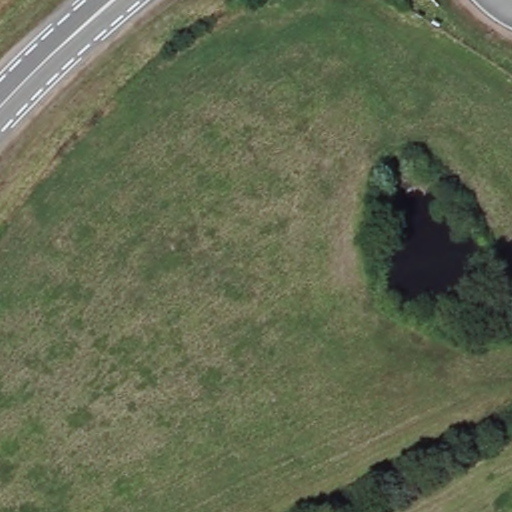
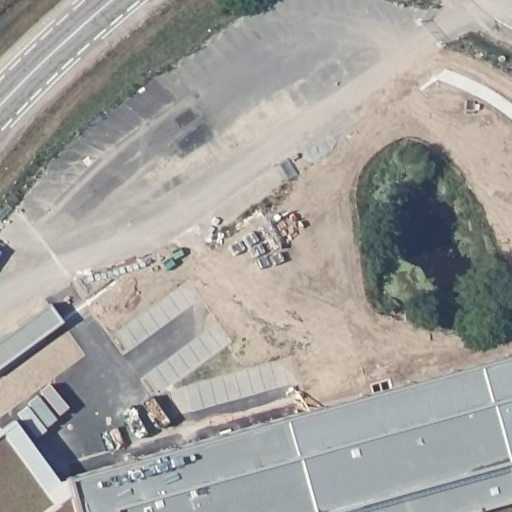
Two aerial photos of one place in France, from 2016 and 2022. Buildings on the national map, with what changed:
new [(64,483),(71,480),(512,357),(512,512),(0,512),(0,433),(16,421),(64,483)]

